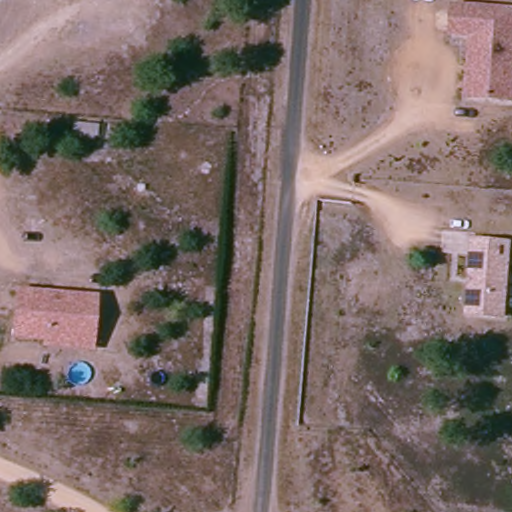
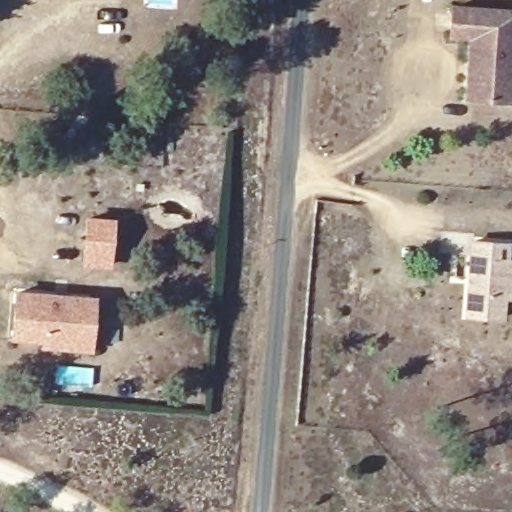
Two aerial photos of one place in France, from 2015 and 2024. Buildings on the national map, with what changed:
unchanged [(482,35),(460,35),(463,6),(512,7),(512,98),(480,97),(482,35)]
new [(83,265),(87,216),(116,218),(112,268),(83,265)]
unchanged [(512,300),(511,315),(476,315),(478,241),(512,241),(512,300)]
unchanged [(90,336),(26,336),(29,291),(105,292),(105,308),(104,337),(90,336)]

